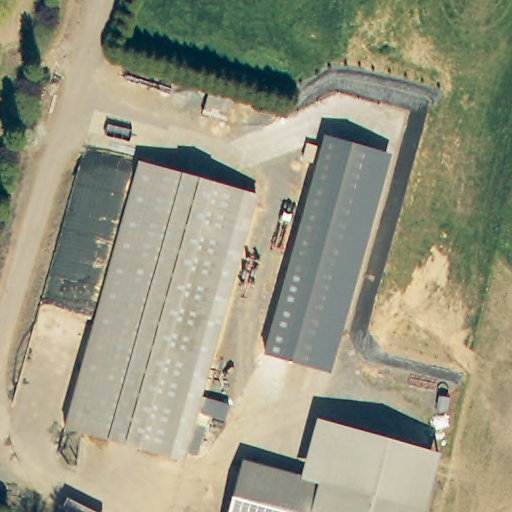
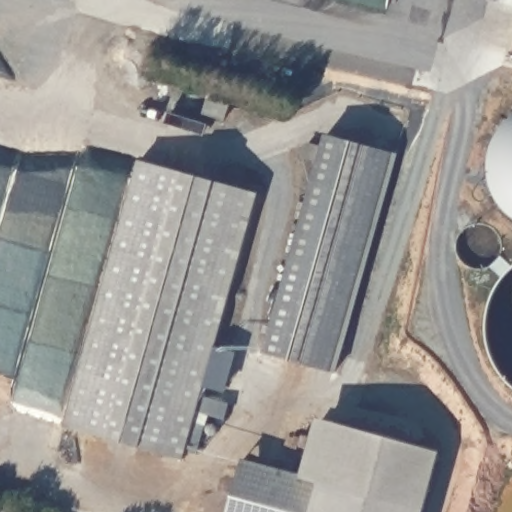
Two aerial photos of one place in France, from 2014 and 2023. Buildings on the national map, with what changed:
unchanged [(330,372),(264,354),(324,136),(391,154),(330,372)]
unchanged [(148,156),(262,191),(188,443),(184,458),(68,425),(148,156)]
unchanged [(227,512),(242,460),(301,477),(318,418),(439,452),(423,512),(227,512)]

